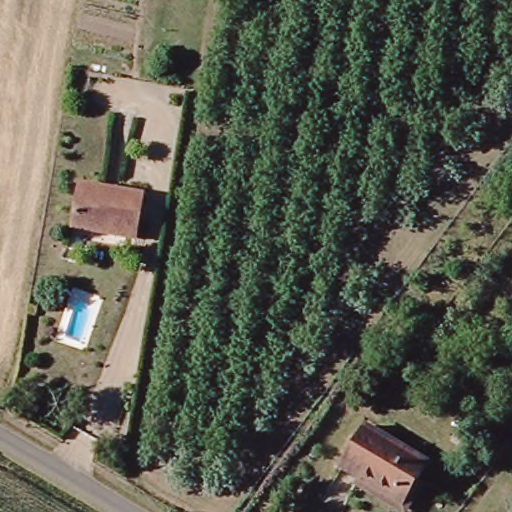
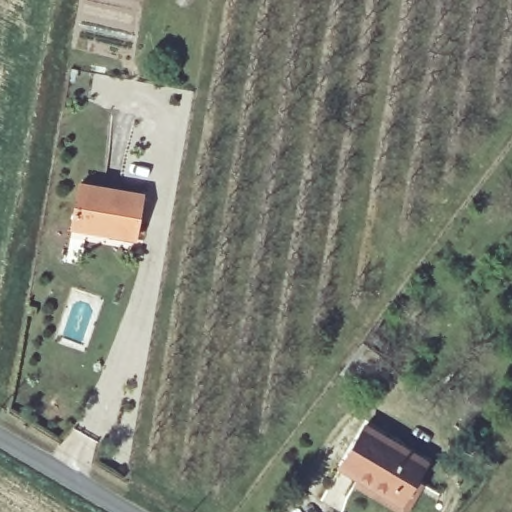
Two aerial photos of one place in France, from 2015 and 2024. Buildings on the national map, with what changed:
unchanged [(73,225),(81,178),(145,189),(137,235),(73,225)]
unchanged [(423,460),(399,501),(336,463),(360,423),(423,460)]

